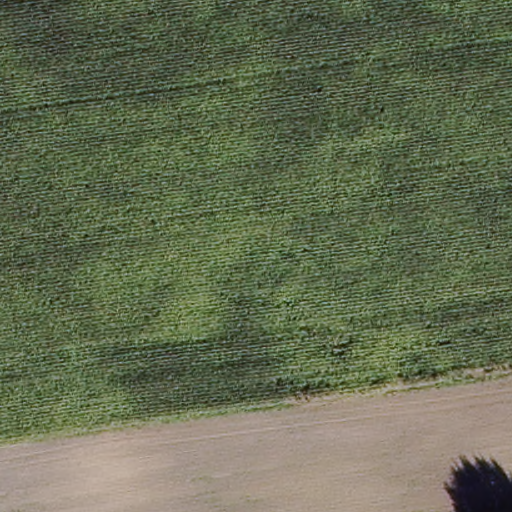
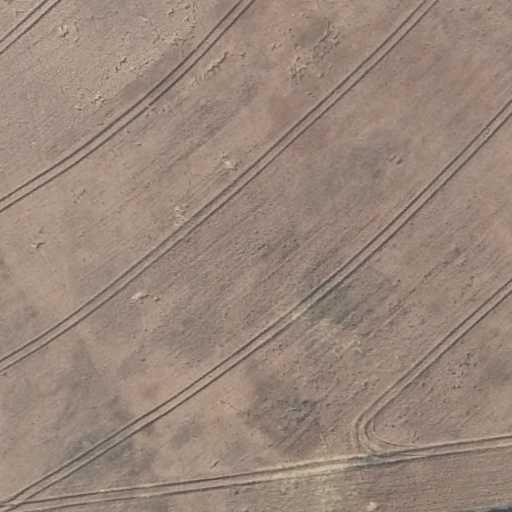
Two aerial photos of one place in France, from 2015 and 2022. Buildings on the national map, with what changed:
[]

